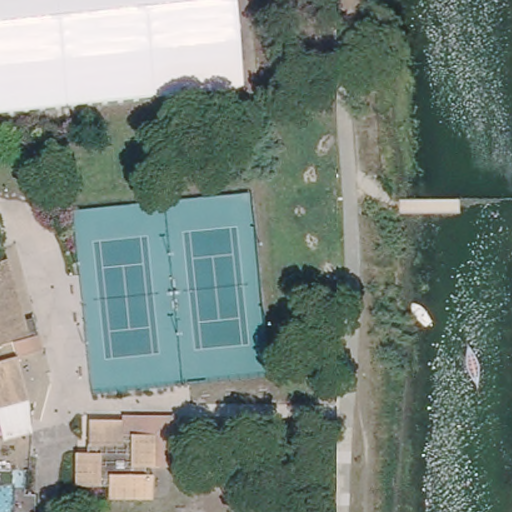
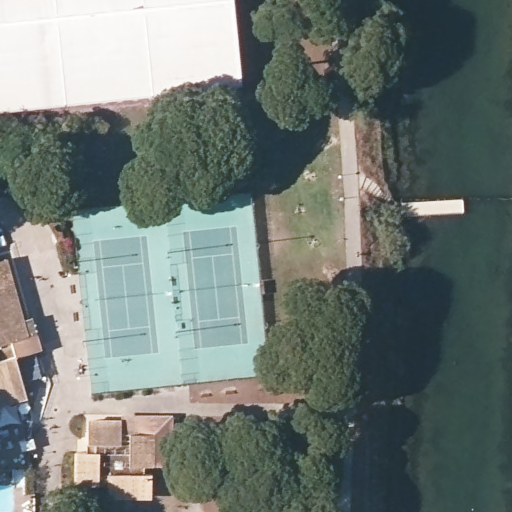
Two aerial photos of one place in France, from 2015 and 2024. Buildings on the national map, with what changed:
unchanged [(171,94),(0,112),(0,0),(232,0),(241,86),(171,94)]
unchanged [(0,400),(0,255),(6,254),(26,333),(14,337),(18,352),(29,393),(0,400)]
unchanged [(89,440),(89,418),(123,419),(123,431),(151,432),(150,464),(140,464),(139,471),(150,471),(150,494),(105,494),(105,481),(75,480),(75,450),(95,451),(95,441),(89,440)]

